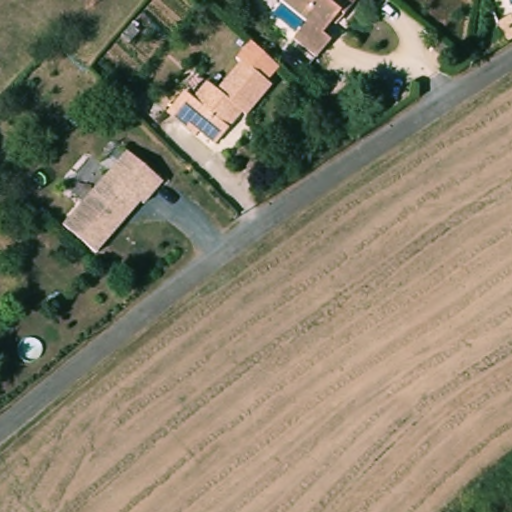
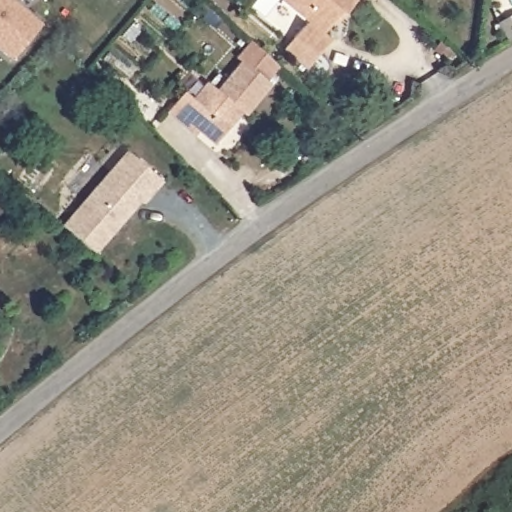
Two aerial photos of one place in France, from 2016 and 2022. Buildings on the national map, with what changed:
new [(9,0),(43,29),(15,64),(0,51),(0,0),(9,0)]
unchanged [(337,15),(320,32),(330,40),(318,54),(293,34),(305,20),(284,0),(357,0),(340,17),(337,15)]
unchanged [(512,20),(512,39),(504,44),(494,27),(510,17),(512,20)]
unchanged [(274,87),(247,115),(242,111),(210,142),(197,130),(192,135),(165,109),(186,88),(193,95),(208,81),(216,89),(244,60),(239,55),(253,41),(265,52),(283,70),(270,84),(274,87)]
unchanged [(127,159),(162,190),(143,211),(140,209),(94,260),(62,231),(127,159)]

